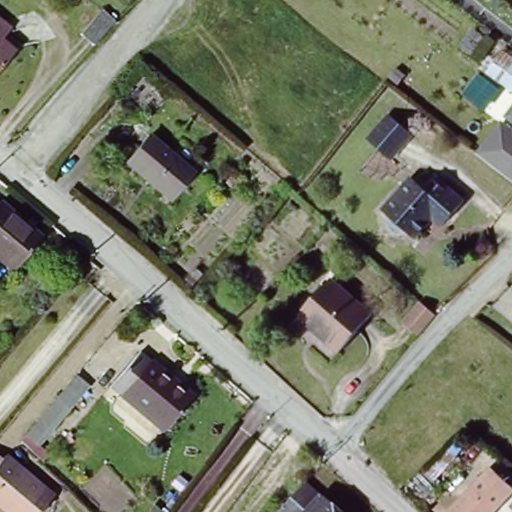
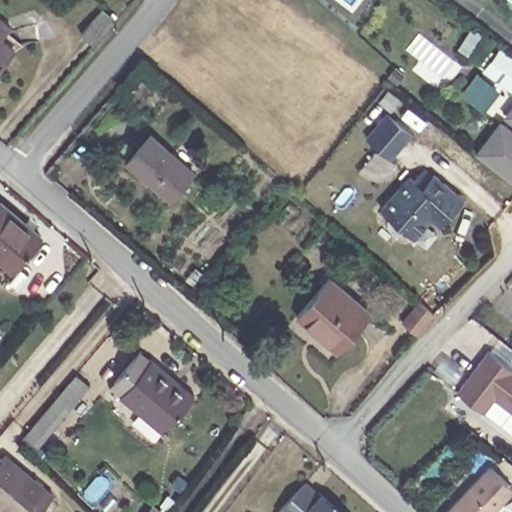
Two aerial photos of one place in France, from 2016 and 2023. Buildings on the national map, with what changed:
unchanged [(94,48),(80,35),(99,12),(114,24),(94,48)]
unchanged [(1,43),(19,57),(0,82),(0,19),(12,28),(1,43)]
unchanged [(512,50),(512,79),(484,56),(498,38),(512,50)]
unchanged [(504,113),(512,104),(512,120),(504,113)]
unchanged [(387,114),(412,134),(391,159),(367,138),(387,114)]
unchanged [(500,146),(512,156),(512,178),(476,151),(500,119),(510,126),(512,124),(512,131),(500,146)]
unchanged [(500,146),(512,131),(512,156),(500,146)]
unchanged [(150,138),(193,176),(169,203),(126,165),(150,138)]
unchanged [(430,224),(412,246),(379,210),(414,176),(425,184),(435,175),(466,203),(441,232),(430,224)]
unchanged [(4,266),(0,263),(0,208),(2,205),(32,231),(43,241),(14,274),(4,266)]
unchanged [(370,312),(337,350),(297,315),(330,276),(370,312)]
unchanged [(431,318),(418,334),(404,322),(422,300),(435,312),(431,318)]
new [(489,350),(512,368),(512,411),(495,397),(484,412),(457,391),(489,350)]
unchanged [(192,401),(159,435),(105,387),(140,353),(192,401)]
unchanged [(72,374),(84,387),(50,421),(40,412),(72,374)]
unchanged [(7,465),(55,504),(48,512),(0,512),(0,465),(5,468),(7,465)]
unchanged [(510,490),(490,512),(475,512),(460,498),(487,469),(510,490)]
unchanged [(281,512),(307,478),(343,512),(281,512)]
unchanged [(448,512),(460,498),(475,512),(448,512)]

